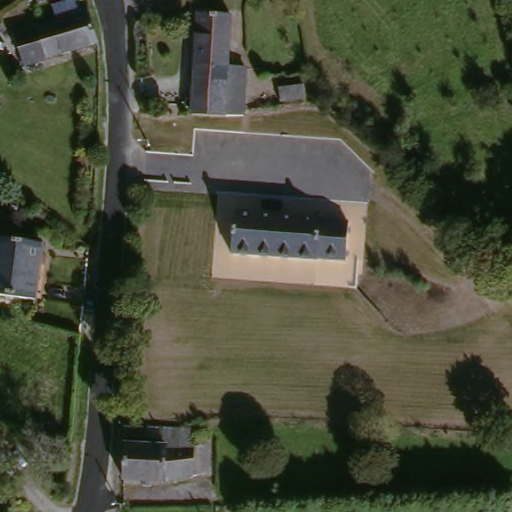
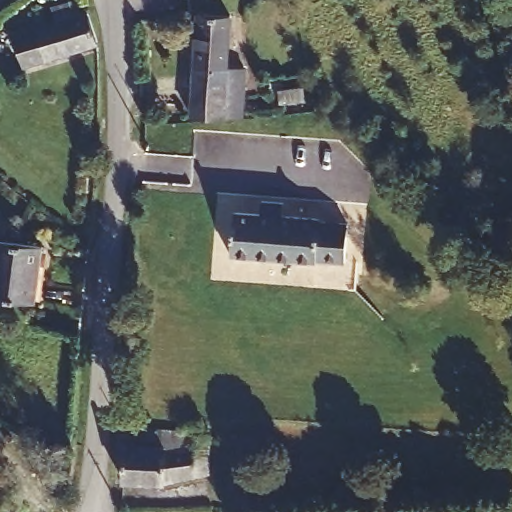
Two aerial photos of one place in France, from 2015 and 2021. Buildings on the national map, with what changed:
unchanged [(55,3),(64,0),(81,0),(84,10),(88,9),(91,8),(103,46),(51,61),(29,68),(17,32),(41,25),(60,18),(55,3)]
unchanged [(237,13),(233,57),(252,61),(247,108),(247,114),(194,112),(194,107),(199,47),(200,9),(237,13)]
unchanged [(323,216),(349,218),(348,253),(361,255),(360,282),(318,278),(318,256),(234,250),(234,208),(262,210),(262,197),(284,197),(283,211),(319,213),(323,216)]
unchanged [(40,293),(0,287),(0,235),(46,242),(40,293)]
unchanged [(185,429),(213,429),(210,470),(167,482),(127,480),(128,425),(185,429)]

